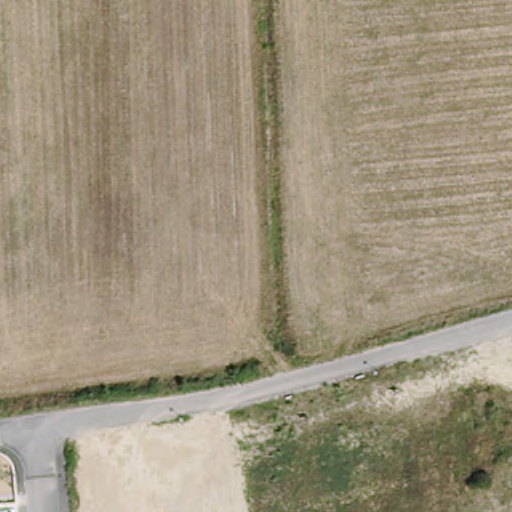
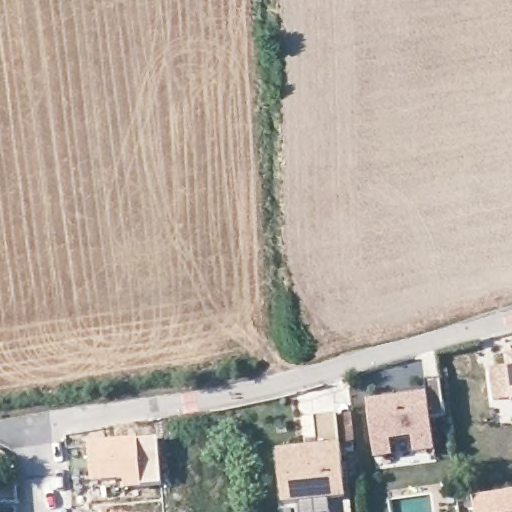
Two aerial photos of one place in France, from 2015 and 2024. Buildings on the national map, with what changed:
new [(491,374),(509,367),(508,362),(512,361),(512,398),(495,404),(491,374)]
new [(416,456),(414,442),(392,444),(394,459),(376,460),(369,404),(427,397),(425,385),(442,382),(446,416),(432,418),(436,455),(416,456)]
new [(284,506),(279,453),(307,450),(306,442),(317,441),(315,418),(337,416),(346,501),(284,506)]
new [(158,438),(163,486),(122,490),(121,485),(91,485),(88,444),(158,438)]

